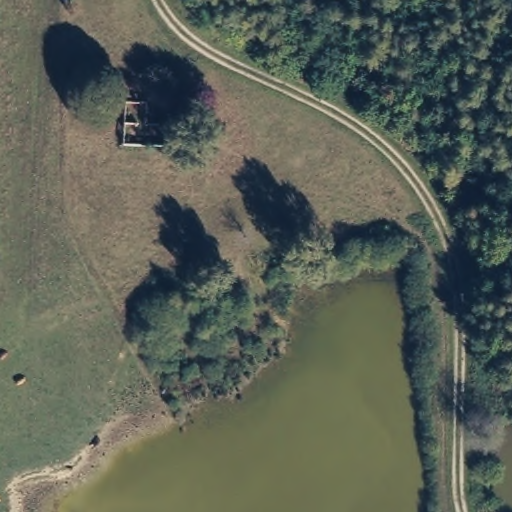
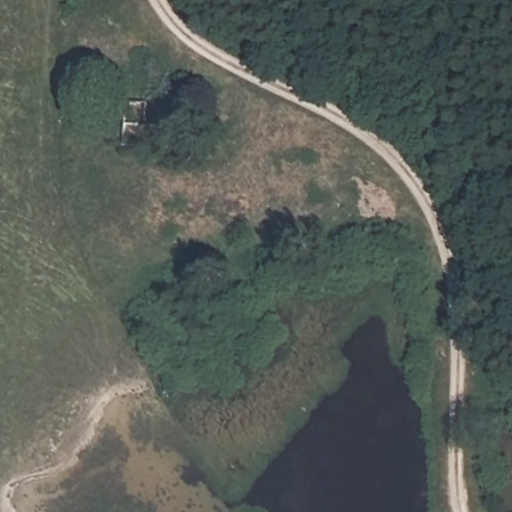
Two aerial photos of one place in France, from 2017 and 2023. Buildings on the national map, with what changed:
unchanged [(127,102),(149,104),(147,126),(168,128),(166,152),(123,148),(127,102)]

